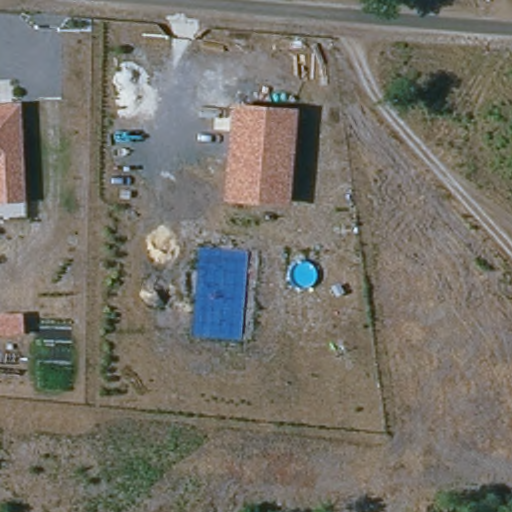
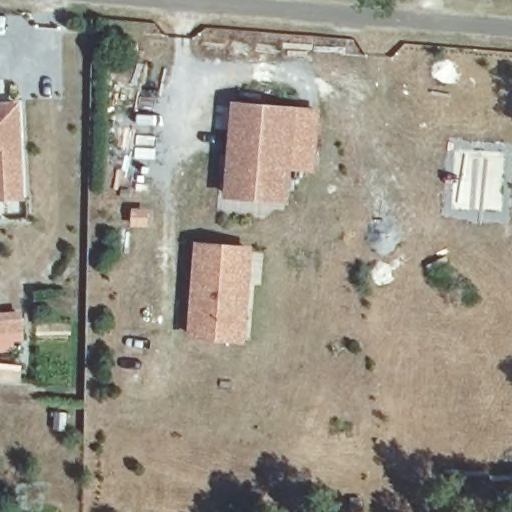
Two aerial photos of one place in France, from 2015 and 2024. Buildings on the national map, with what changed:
unchanged [(24,200),(0,202),(0,104),(21,103),(24,200)]
unchanged [(224,199),(232,103),(297,108),(289,204),(224,199)]
new [(254,246),(245,345),(188,339),(196,241),(254,246)]
unchanged [(22,312),(22,335),(0,336),(0,314),(22,312)]
demolished [(444,503),(504,504),(504,512),(445,512),(444,503)]

